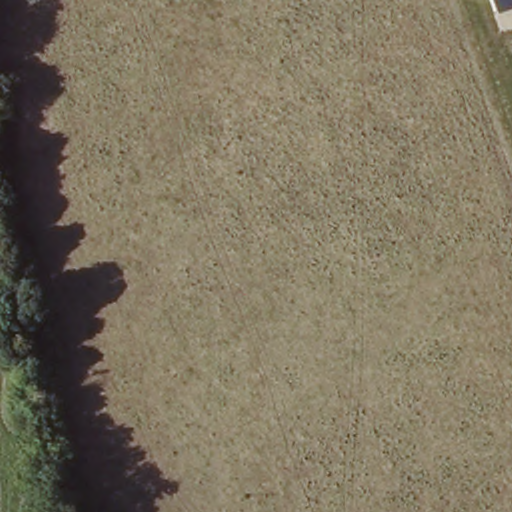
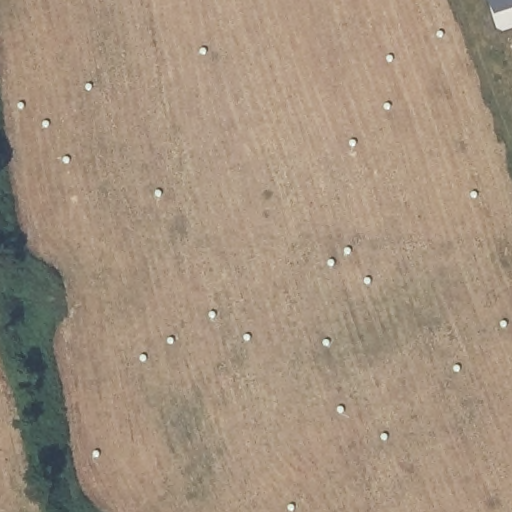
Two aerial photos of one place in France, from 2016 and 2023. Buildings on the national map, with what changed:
unchanged [(512,8),(502,10),(498,0),(512,0),(512,8)]

